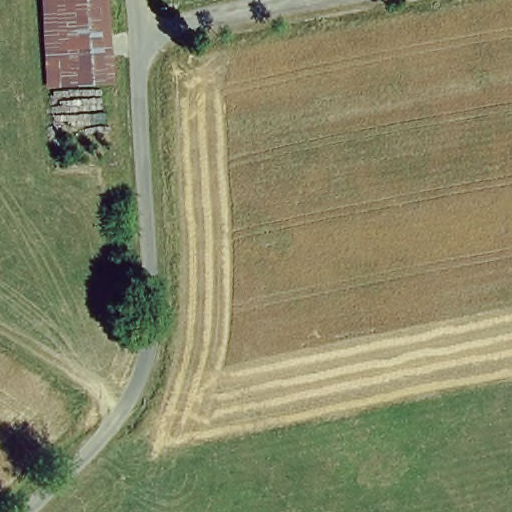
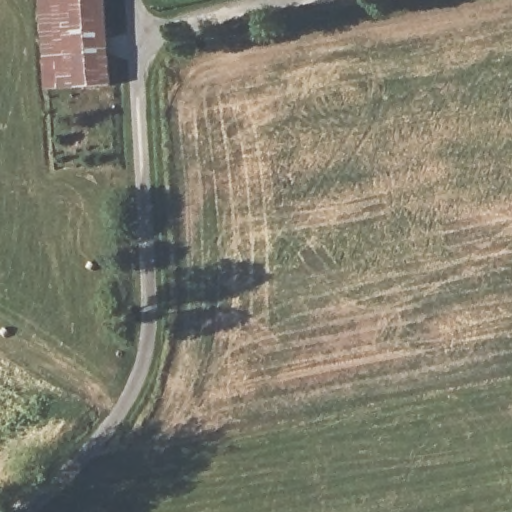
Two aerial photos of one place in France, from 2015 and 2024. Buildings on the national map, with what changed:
unchanged [(106,0),(112,87),(43,91),(37,0),(106,0)]

